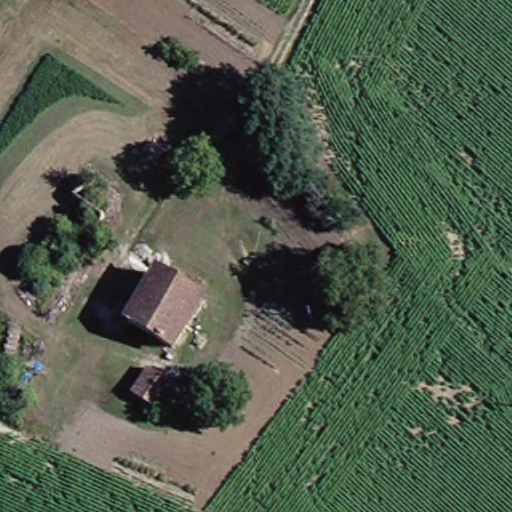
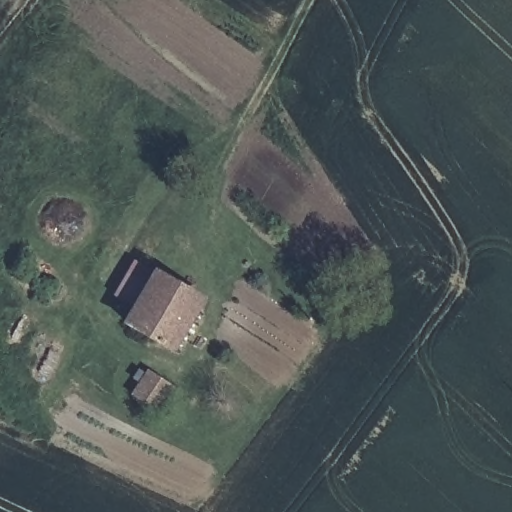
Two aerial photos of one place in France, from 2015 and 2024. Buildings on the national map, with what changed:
unchanged [(210,298),(176,345),(139,316),(170,270),(210,298)]
unchanged [(165,382),(145,403),(125,382),(145,362),(165,382)]

